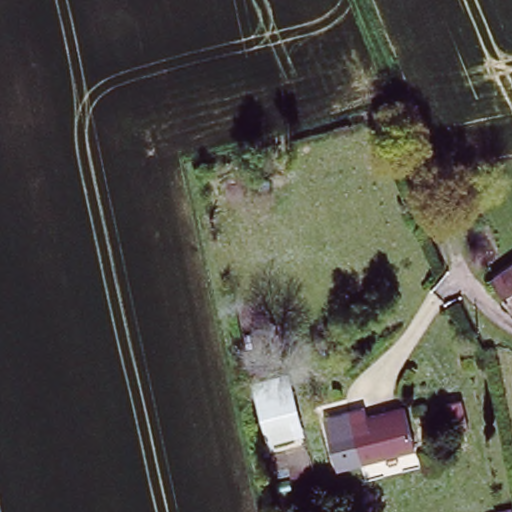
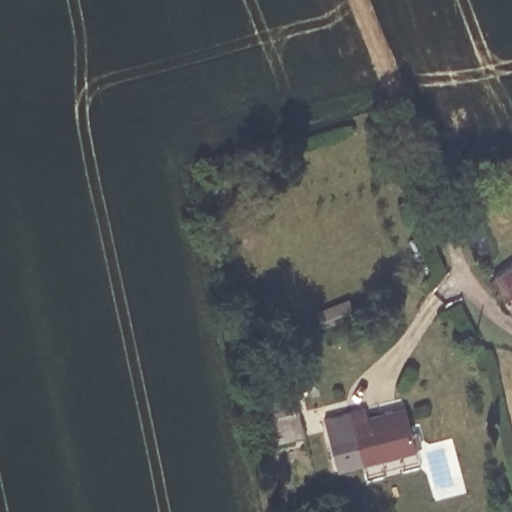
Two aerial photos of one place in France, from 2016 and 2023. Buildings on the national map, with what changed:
unchanged [(512,268),(512,309),(493,282),(512,268)]
unchanged [(443,404),(456,402),(461,431),(448,434),(443,404)]
unchanged [(363,408),(366,418),(402,408),(412,447),(361,463),(347,412),(363,408)]
unchanged [(361,463),(338,470),(323,419),(347,412),(361,463)]

